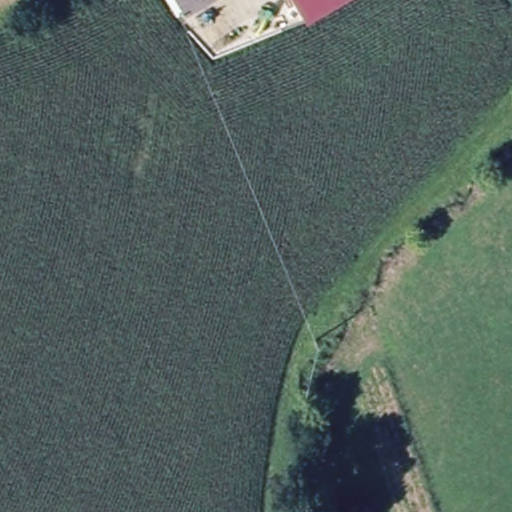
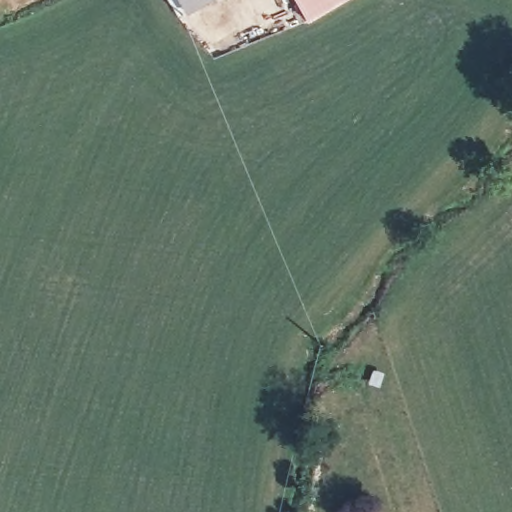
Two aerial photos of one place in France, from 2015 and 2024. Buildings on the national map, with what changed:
unchanged [(177,6),(173,0),(189,0),(177,6)]
unchanged [(307,20),(296,0),(342,0),(307,20)]

